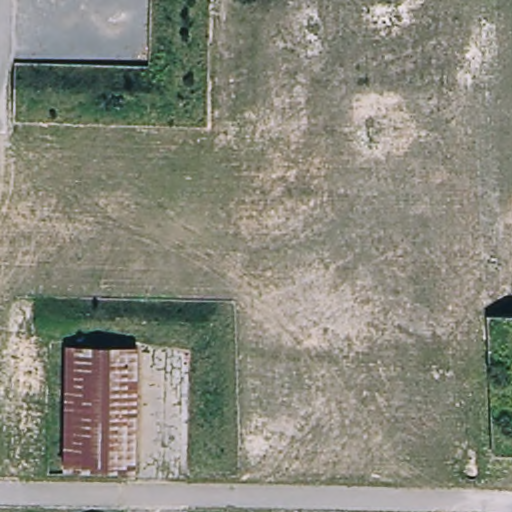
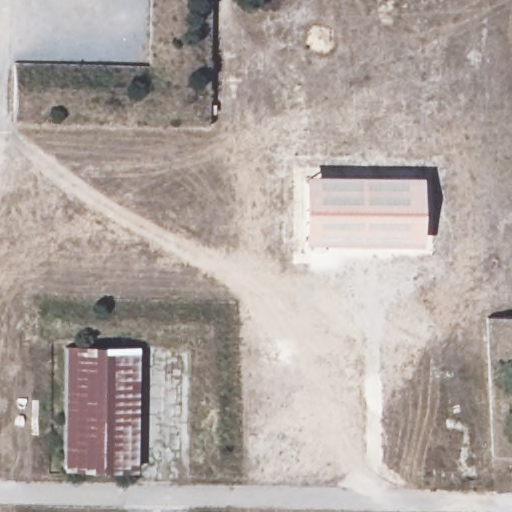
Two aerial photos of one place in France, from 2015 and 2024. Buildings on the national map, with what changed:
unchanged [(154,0),(211,0),(210,126),(20,122),(20,69),(153,67),(154,0)]
new [(422,177),(421,247),(302,246),(303,177),(422,177)]
unchanged [(512,317),(512,458),(497,458),(492,318),(512,317)]
unchanged [(134,471),(64,467),(65,348),(135,348),(134,471)]

